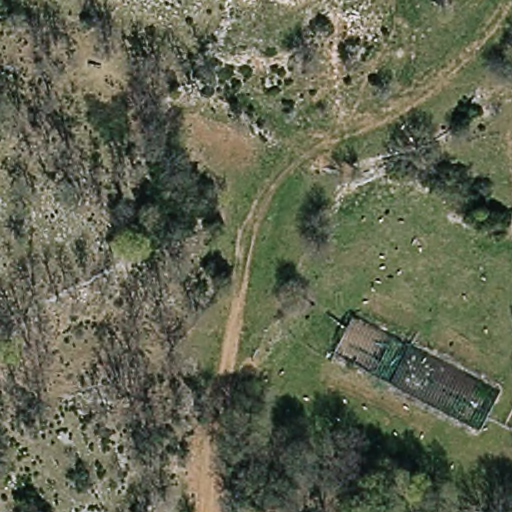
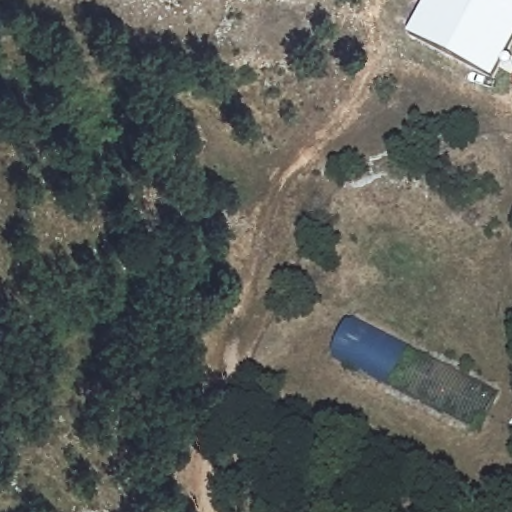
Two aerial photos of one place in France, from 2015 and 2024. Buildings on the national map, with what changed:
new [(408,36),(427,0),(512,0),(512,47),(494,81),(408,36)]
unchanged [(355,317),(501,392),(482,430),(335,357),(355,317)]

